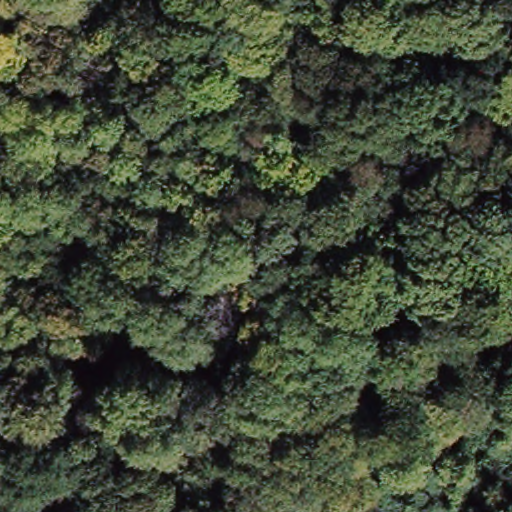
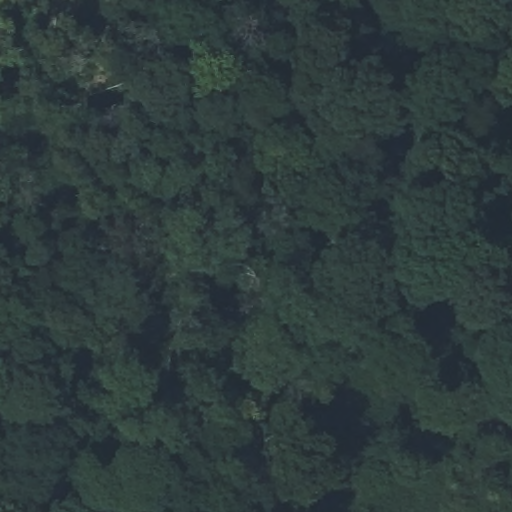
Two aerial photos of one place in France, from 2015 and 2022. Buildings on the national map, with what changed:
[]

